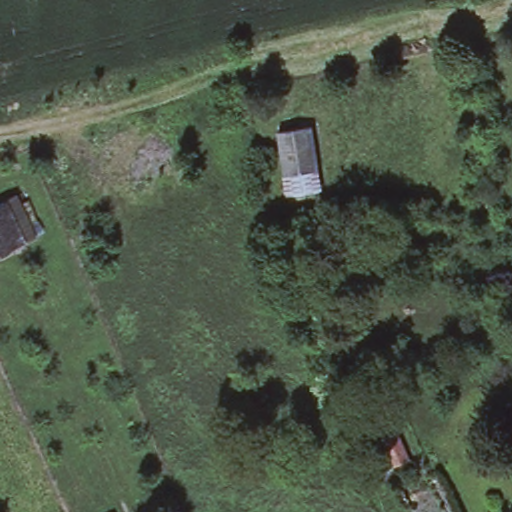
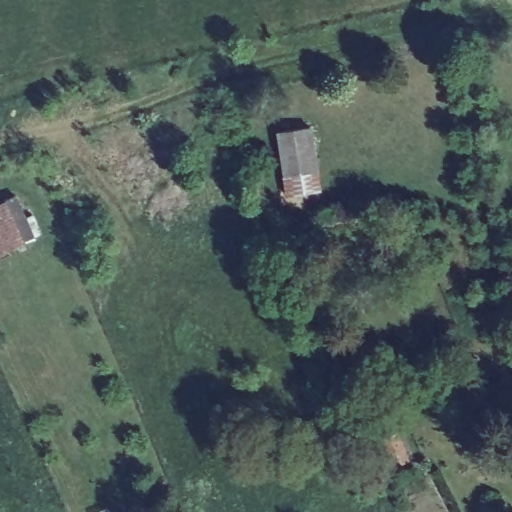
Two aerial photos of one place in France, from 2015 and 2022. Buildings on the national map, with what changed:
unchanged [(276,126),(315,120),(327,194),(288,199),(276,126)]
unchanged [(25,244),(0,256),(0,195),(5,192),(25,244)]

